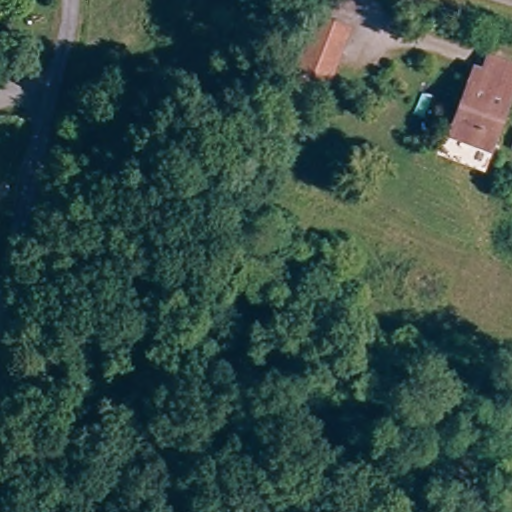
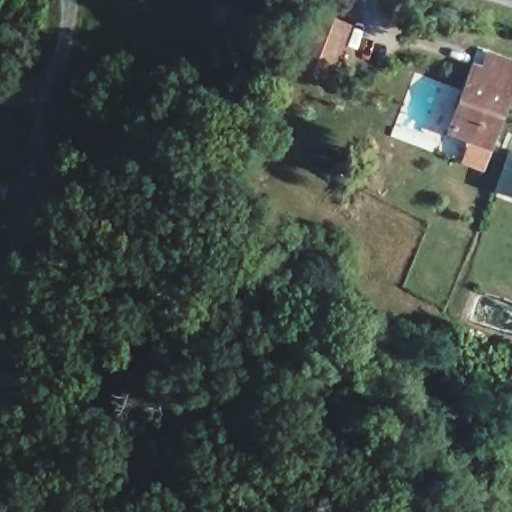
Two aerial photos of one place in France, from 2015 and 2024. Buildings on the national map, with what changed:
unchanged [(292,77),(305,40),(310,27),(336,36),(331,49),(317,86),(292,77)]
unchanged [(477,61),(512,72),(486,154),(450,144),(477,61)]

